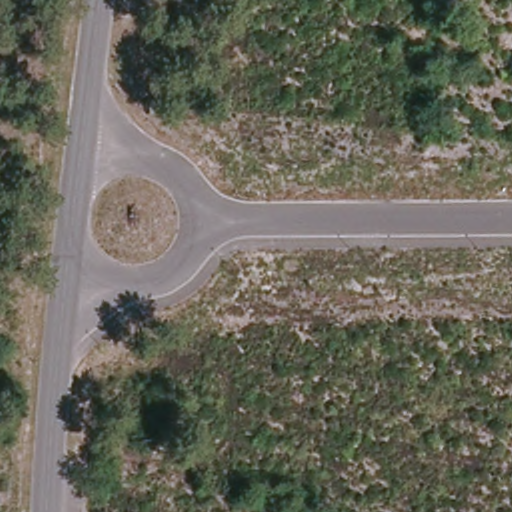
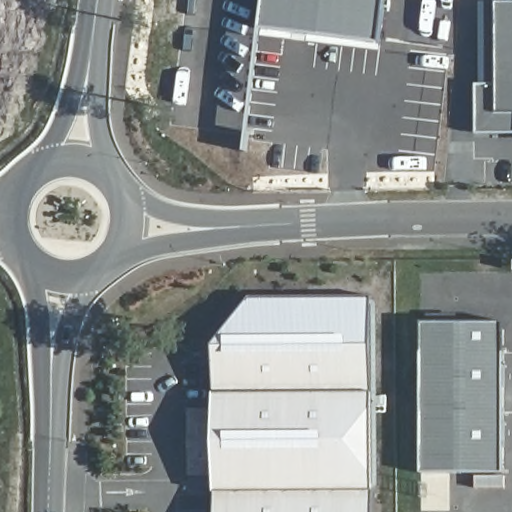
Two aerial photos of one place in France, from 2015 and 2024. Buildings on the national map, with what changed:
new [(387,0),(382,43),(259,28),(263,0),(387,0)]
new [(497,86),(497,3),(512,3),(512,135),(477,135),(477,86),(497,86)]
new [(250,297),(373,297),(374,512),(215,512),(214,474),(193,474),(192,413),(214,413),(214,346),(250,297)]
new [(422,322),(505,323),(504,474),(421,473),(422,322)]

